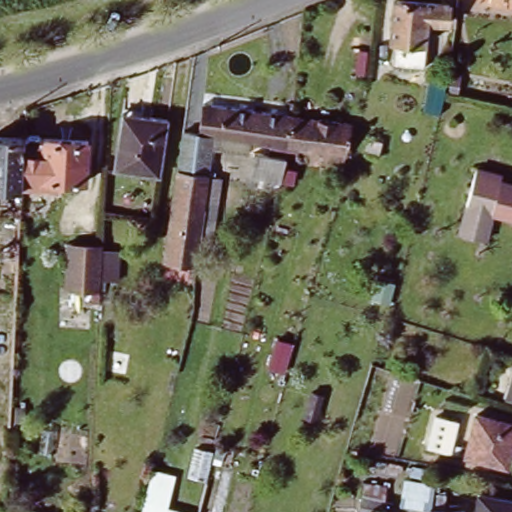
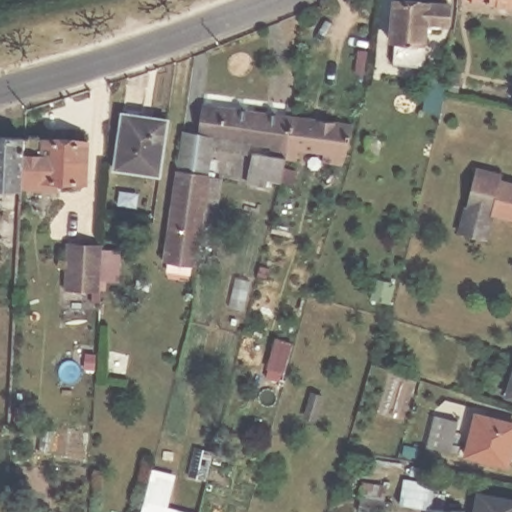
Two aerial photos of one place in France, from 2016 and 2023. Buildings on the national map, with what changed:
unchanged [(446,2),(444,19),(422,19),(421,43),(424,43),(423,67),(392,65),(393,42),(389,42),(392,0),(446,2)]
unchanged [(491,5),(492,0),(512,0),(512,10),(491,5)]
unchanged [(426,75),(443,76),(440,95),(423,91),(426,75)]
unchanged [(178,172),(183,132),(199,134),(204,103),(290,115),(285,159),(269,157),(271,145),(213,136),(208,175),(178,172)]
unchanged [(290,115),(352,124),(344,165),(321,161),(323,152),(297,149),(296,161),(285,159),(290,115)]
unchanged [(115,173),(123,117),(169,122),(162,179),(115,173)]
unchanged [(20,143),(21,138),(33,138),(33,143),(78,145),(75,185),(33,182),(33,192),(13,191),(13,189),(16,142),(20,143)]
unchanged [(0,140),(16,140),(16,142),(13,189),(0,189),(0,140)]
unchanged [(492,214),(485,242),(460,235),(476,170),(503,176),(501,183),(512,186),(512,219),(492,214)]
unchanged [(166,261),(178,172),(208,175),(194,265),(166,261)]
unchanged [(158,265),(144,263),(146,242),(147,229),(161,230),(158,265)]
unchanged [(66,292),(69,248),(103,250),(100,293),(66,292)]
unchanged [(503,396),(512,373),(512,400),(503,396)]
unchanged [(478,413),(512,423),(512,445),(506,464),(467,454),(478,413)]
unchanged [(176,473),(168,506),(193,512),(140,512),(152,467),(176,473)]
unchanged [(473,512),(476,498),(512,504),(512,512),(473,512)]
unchanged [(391,512),(367,512),(368,509),(391,512)]
unchanged [(443,512),(427,512),(428,510),(443,512)]

